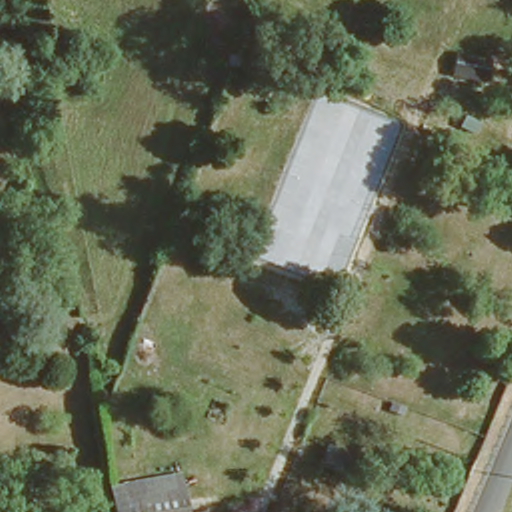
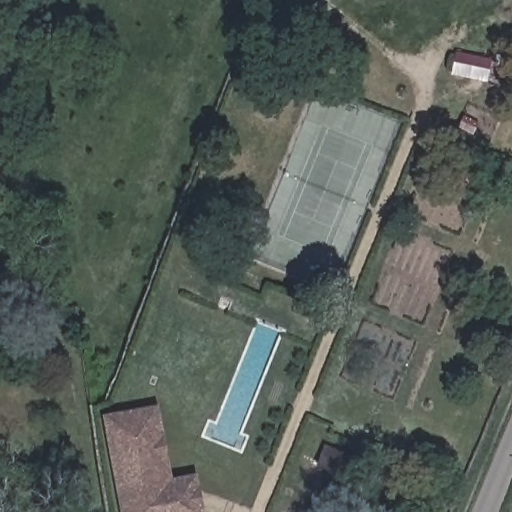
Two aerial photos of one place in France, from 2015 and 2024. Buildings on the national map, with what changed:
demolished [(138,359),(159,385),(137,417),(144,459),(180,458),(183,512),(107,512),(101,409),(138,359)]
new [(159,405),(159,406),(172,478),(197,474),(204,512),(118,512),(102,416),(159,405)]

